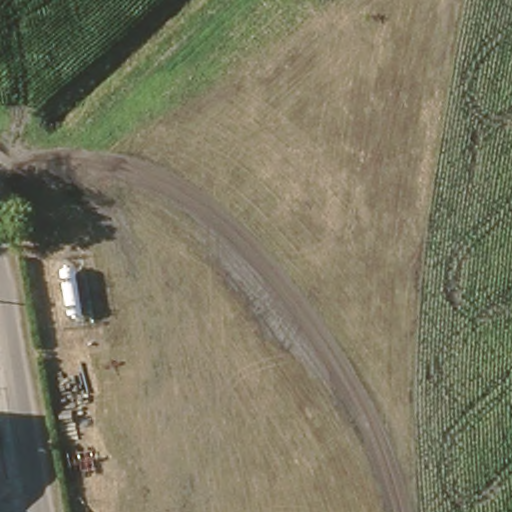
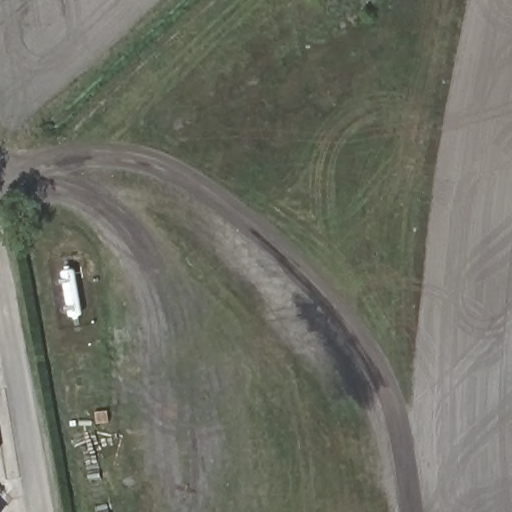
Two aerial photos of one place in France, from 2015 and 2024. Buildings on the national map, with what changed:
unchanged [(0,430),(2,445),(0,445),(0,430)]

